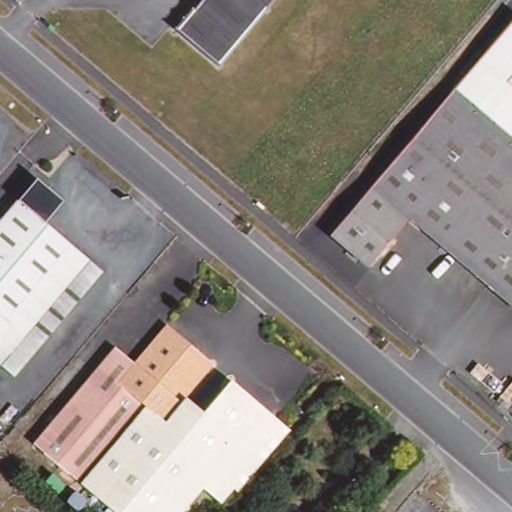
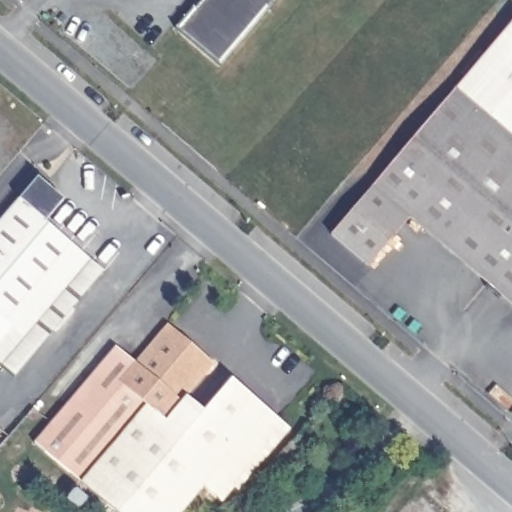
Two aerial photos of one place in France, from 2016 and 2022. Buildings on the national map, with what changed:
unchanged [(224,45),(182,10),(191,0),(262,0),(224,45)]
unchanged [(512,136),(455,88),(512,20),(512,136)]
unchanged [(512,307),(411,217),(374,184),(455,88),(512,136),(512,307)]
unchanged [(0,365),(0,221),(19,199),(37,177),(64,199),(46,221),(90,258),(106,270),(88,291),(14,376),(0,365)]
unchanged [(367,266),(331,235),(374,184),(411,217),(367,266)]
unchanged [(79,348),(99,365),(146,308),(191,346),(160,384),(180,399),(211,362),(258,402),(268,411),(221,467),(219,470),(217,469),(214,466),(204,478),(200,483),(198,482),(182,469),(146,512),(117,512),(15,426),(79,348)]
unchanged [(57,490),(68,477),(78,486),(66,498),(57,490)]

